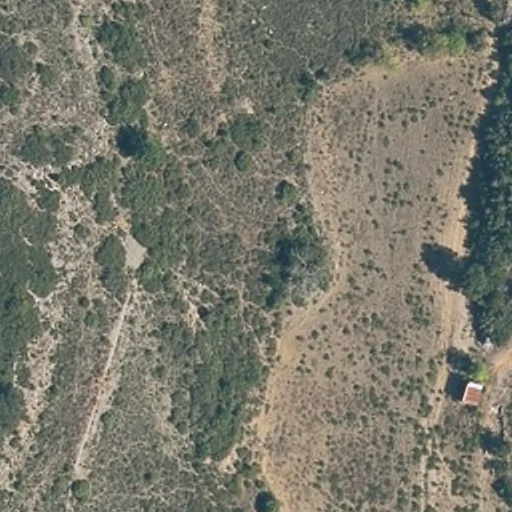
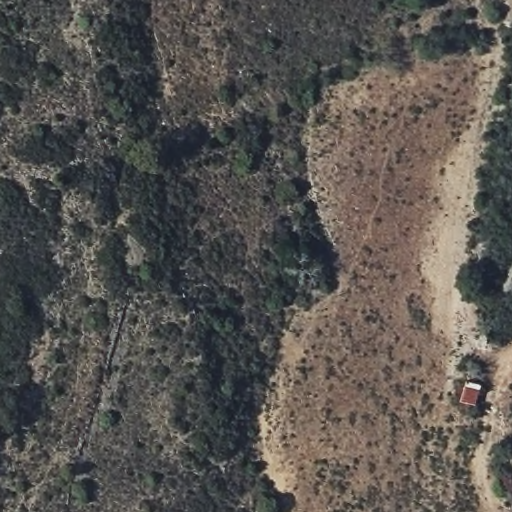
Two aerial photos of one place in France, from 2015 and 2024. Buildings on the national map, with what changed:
unchanged [(464,377),(481,380),(474,401),(460,398),(464,377)]

